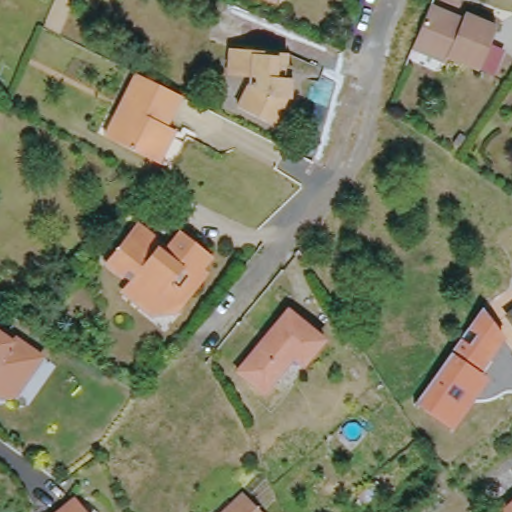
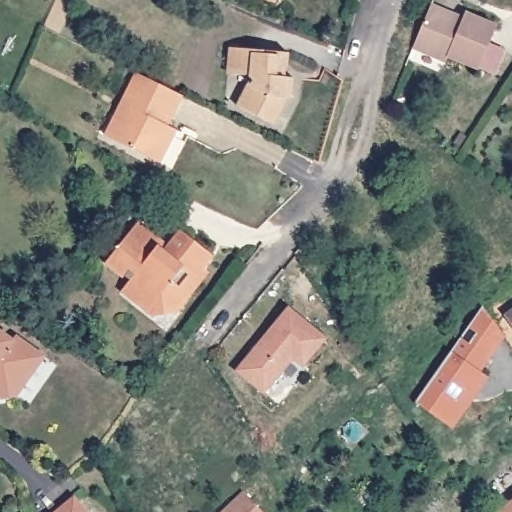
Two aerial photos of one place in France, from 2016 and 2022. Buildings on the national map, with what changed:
unchanged [(271,0),(274,0),(274,1),(271,0)]
unchanged [(461,18),(464,12),(494,25),(475,68),(414,42),(430,5),(461,18)]
unchanged [(292,65),(282,70),(281,77),(297,79),(296,99),(285,98),(271,122),(242,107),(255,82),(256,76),(240,75),(242,49),(293,53),(292,65)]
unchanged [(168,140),(157,162),(113,140),(105,135),(115,115),(135,74),(176,95),(180,96),(165,125),(174,130),(168,140)]
unchanged [(162,244),(169,250),(183,232),(211,255),(182,290),(187,294),(171,313),(153,315),(136,301),(145,292),(108,262),(128,238),(151,257),(162,244)]
unchanged [(506,336),(480,372),(490,381),(453,430),(417,403),(482,307),(506,336)]
unchanged [(295,310),(330,341),(307,366),(298,358),(268,392),(242,369),(295,310)]
unchanged [(512,334),(509,330),(502,320),(512,312),(512,334)]
unchanged [(13,343),(18,336),(36,350),(46,358),(31,380),(17,399),(3,401),(0,399),(0,333),(13,343)]
unchanged [(262,512),(225,512),(243,493),(262,512)]
unchanged [(441,505),(431,512),(425,502),(433,495),(441,505)]
unchanged [(86,512),(57,512),(73,497),(86,512)]
unchanged [(512,512),(496,512),(512,497),(512,512)]

